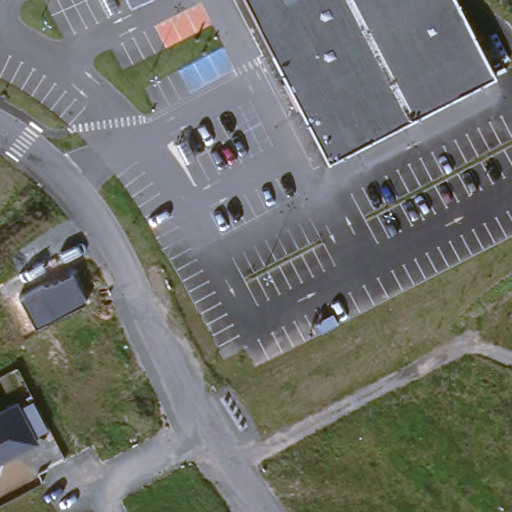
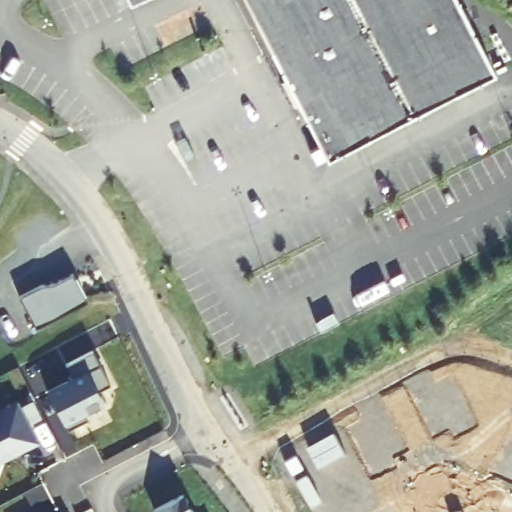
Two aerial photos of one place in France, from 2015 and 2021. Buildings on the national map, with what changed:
unchanged [(131,8),(127,0),(146,0),(131,8)]
unchanged [(504,76),(506,77),(329,161),(240,0),(463,0),(504,76)]
unchanged [(36,329),(20,298),(49,282),(51,285),(74,274),(89,300),(36,329)]
new [(69,384),(62,369),(88,356),(106,390),(93,397),(99,409),(79,419),(83,426),(63,436),(43,398),(69,384)]
unchanged [(0,468),(0,406),(2,409),(17,402),(39,443),(1,464),(0,468)]
new [(183,512),(166,512),(179,505),(183,512)]

